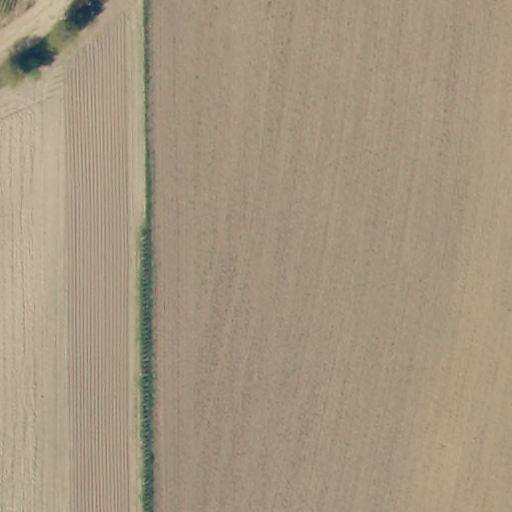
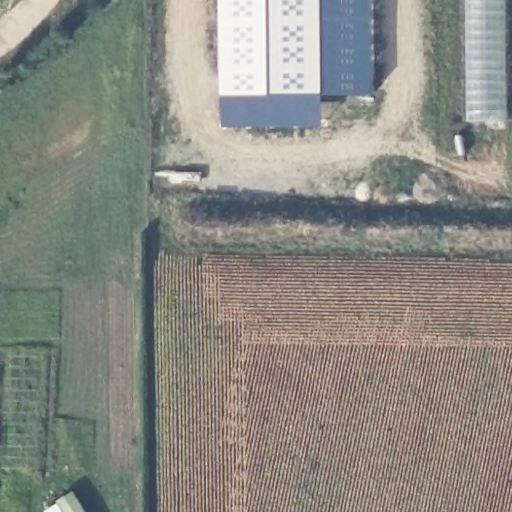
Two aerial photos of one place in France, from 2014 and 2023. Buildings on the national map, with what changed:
new [(222,95),(220,0),(371,0),(373,94),(222,95)]

